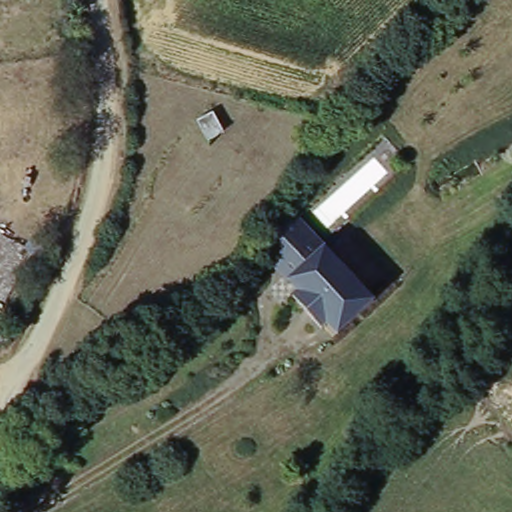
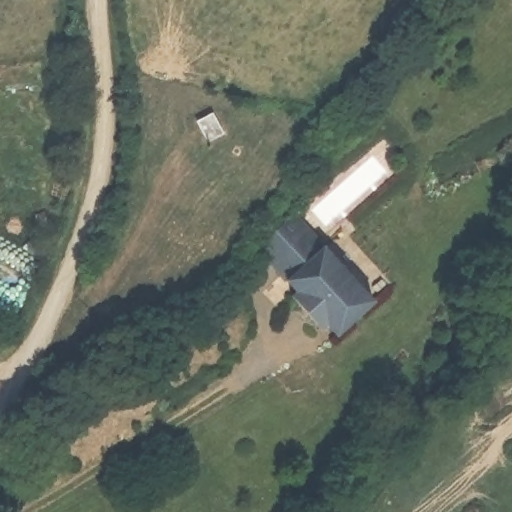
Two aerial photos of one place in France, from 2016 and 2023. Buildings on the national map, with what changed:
unchanged [(210,111),(222,130),(209,137),(199,119),(210,111)]
unchanged [(322,326),(316,333),(288,301),(294,294),(254,250),(295,211),(323,246),(339,232),(387,287),(332,335),(330,337),(322,326)]
unchanged [(28,492),(0,509),(0,487),(20,475),(28,492)]

